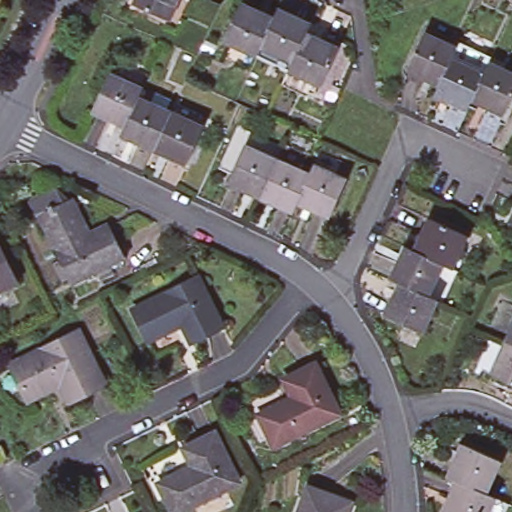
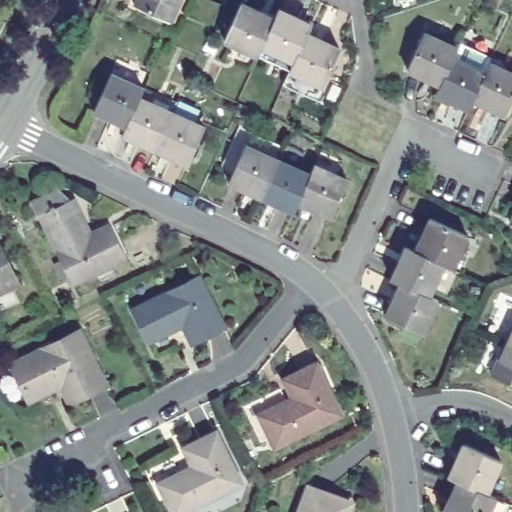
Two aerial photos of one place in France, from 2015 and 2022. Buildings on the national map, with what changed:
unchanged [(170,21),(135,5),(137,0),(179,0),(170,21)]
unchanged [(267,42),(262,51),(230,36),(246,0),(250,0),(280,14),(267,42)]
unchanged [(299,57),(267,42),(280,14),(284,5),(316,20),(312,29),(299,57)]
unchanged [(327,81),(295,66),(299,57),(312,29),(345,44),(327,81)]
unchanged [(458,57),(445,85),(412,70),(430,33),(462,48),(458,57)]
unchanged [(477,100),(473,109),(441,95),(445,85),(458,57),(490,72),(477,100)]
unchanged [(477,100),(490,72),(494,63),(512,71),(512,111),(510,115),(477,100)]
unchanged [(99,111),(115,74),(148,89),(144,98),(132,126),(99,111)]
unchanged [(144,98),(176,112),(160,150),(127,135),(132,126),(144,98)]
unchanged [(176,112),(209,127),(193,165),(160,150),(176,112)]
unchanged [(288,160),(255,146),(242,174),(230,169),(249,127),(294,147),(288,160)]
unchanged [(239,183),(242,174),(255,146),(288,160),(271,198),(239,183)]
unchanged [(288,160),(320,175),(308,203),(304,212),(271,198),(288,160)]
unchanged [(320,175),(325,166),(357,180),(341,218),(308,203),(320,175)]
unchanged [(73,202),(90,236),(108,227),(123,258),(74,282),(42,217),(52,212),(50,207),(53,205),(56,210),(73,202)]
unchanged [(420,246),(435,214),(472,231),(458,264),(448,259),(420,246)]
unchanged [(512,214),(512,219),(510,219),(512,214)]
unchanged [(19,278),(0,287),(0,241),(19,278)]
unchanged [(405,279),(396,275),(411,242),(420,246),(448,259),(434,292),(405,279)]
unchanged [(228,322),(197,337),(188,319),(154,336),(139,305),(204,273),(228,322)]
unchanged [(428,329),(390,312),(405,279),(434,292),(443,296),(428,329)]
unchanged [(110,380),(75,397),(66,379),(34,395),(17,360),(84,327),(110,380)]
unchanged [(499,370),(484,364),(495,341),(509,347),(512,342),(512,382),(497,375),(499,370)]
unchanged [(263,402),(270,415),(304,398),(295,380),(326,365),(350,414),(285,446),(280,434),(270,439),(254,406),(263,402)]
unchanged [(194,512),(176,512),(165,489),(199,472),(190,454),(221,439),(245,487),(194,512)]
unchanged [(449,472),(464,439),(501,456),(486,489),(458,476),(449,472)]
unchanged [(2,446),(8,458),(0,461),(0,446),(2,446)]
unchanged [(486,512),(450,512),(443,509),(458,476),(486,489),(495,493),(509,499),(503,512),(490,512),(487,511),(486,512)]
unchanged [(298,512),(309,483),(351,499),(346,512),(298,512)]

